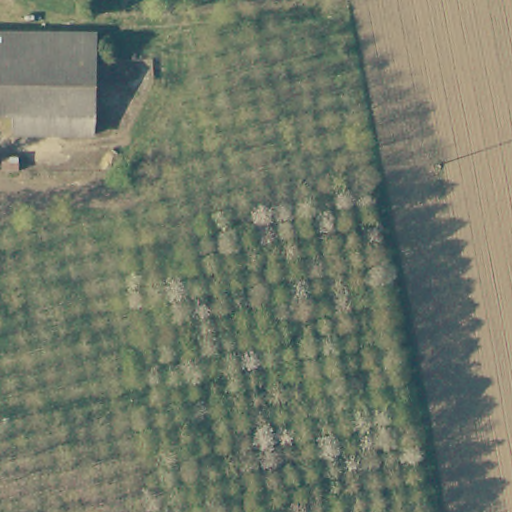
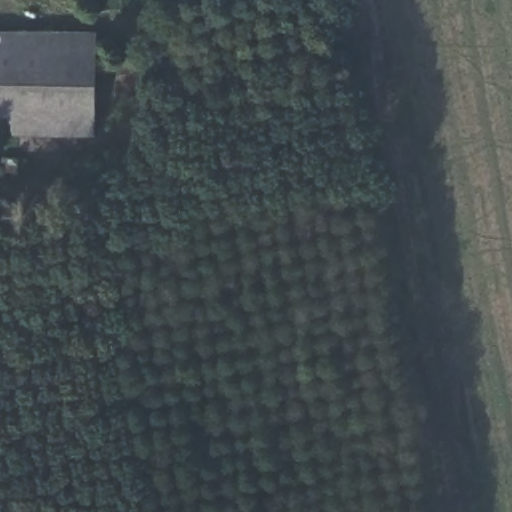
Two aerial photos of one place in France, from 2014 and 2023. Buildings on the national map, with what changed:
unchanged [(92,54),(91,135),(15,134),(15,114),(0,114),(0,31),(43,32),(43,53),(92,54)]
unchanged [(92,33),(92,54),(43,53),(43,32),(92,33)]

